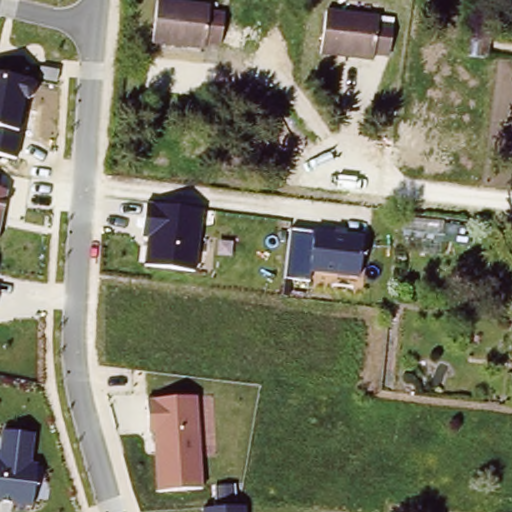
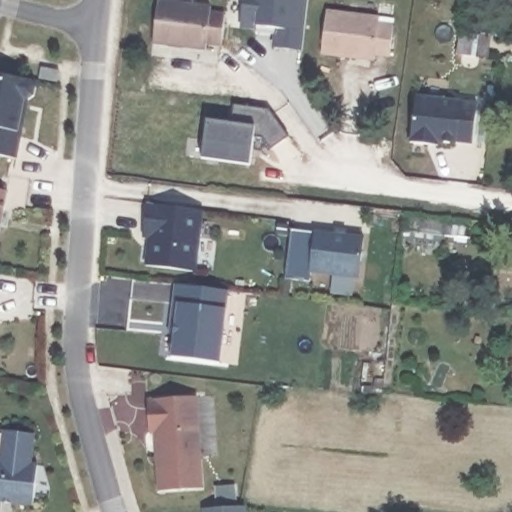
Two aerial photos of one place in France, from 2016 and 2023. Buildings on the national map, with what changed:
new [(273,28),(255,25),(255,29),(240,26),(243,0),(307,0),(302,30),(300,50),(272,47),(273,28)]
unchanged [(203,13),(218,14),(215,45),(200,43),(198,49),(146,43),(152,1),(203,6),(203,13)]
unchanged [(320,53),(325,11),(377,16),(377,22),(392,24),(388,54),(373,52),(372,59),(320,53)]
unchanged [(455,53),(459,32),(487,36),(485,57),(455,53)]
unchanged [(32,81),(35,86),(35,95),(27,99),(23,99),(18,129),(22,129),(17,157),(0,155),(0,75),(32,81)]
new [(471,143),(456,141),(455,144),(437,141),(437,145),(408,141),(416,93),(462,99),(477,101),(471,143)]
new [(262,136),(252,136),(249,163),(202,157),(208,118),(232,122),(234,105),(268,109),(287,136),(270,148),(262,136)]
unchanged [(7,183),(0,223),(0,182),(7,183)]
unchanged [(147,235),(140,233),(145,199),(202,206),(194,269),(143,263),(147,235)]
new [(438,240),(437,253),(415,250),(417,240),(406,238),(408,215),(443,219),(443,224),(471,227),(468,245),(438,240)]
demolished [(402,228),(403,219),(442,224),(441,233),(402,228)]
unchanged [(290,227),(312,229),(362,235),(357,278),(308,273),(307,280),(283,276),(290,227)]
new [(225,308),(219,362),(170,356),(172,332),(167,333),(174,283),(227,290),(225,308)]
unchanged [(152,432),(145,433),(144,398),(197,396),(200,486),(155,490),(152,432)]
unchanged [(32,432),(28,463),(35,464),(30,507),(0,504),(0,429),(32,432)]
unchanged [(245,504),(245,512),(201,512),(200,507),(245,504)]

